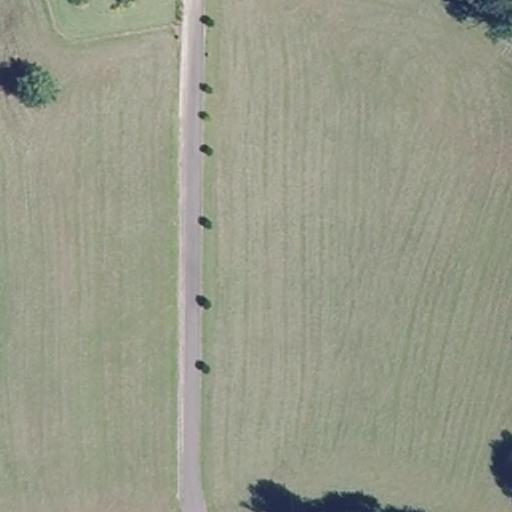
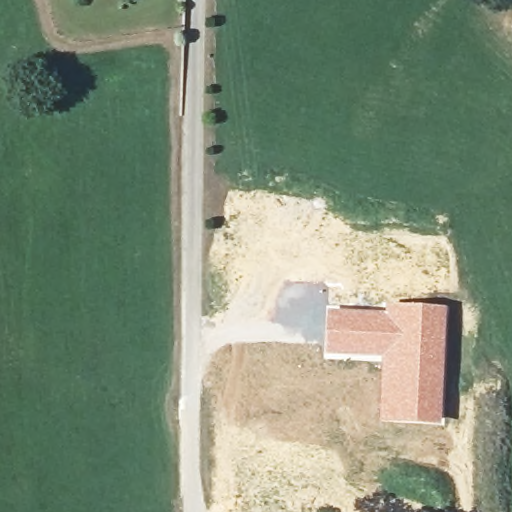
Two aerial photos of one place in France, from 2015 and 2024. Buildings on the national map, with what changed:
new [(327,306),(386,310),(386,303),(448,306),(442,425),(380,422),(382,358),(325,355),(327,306)]

